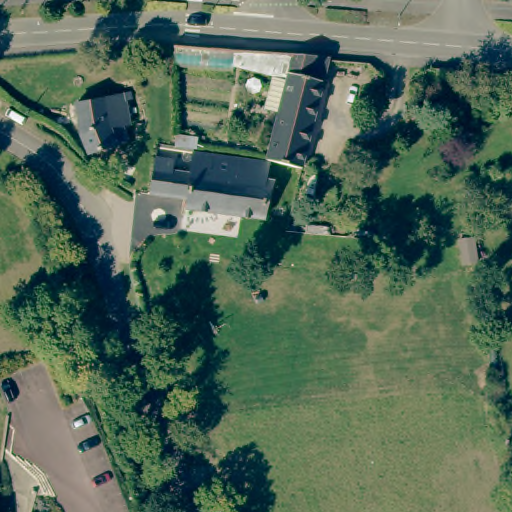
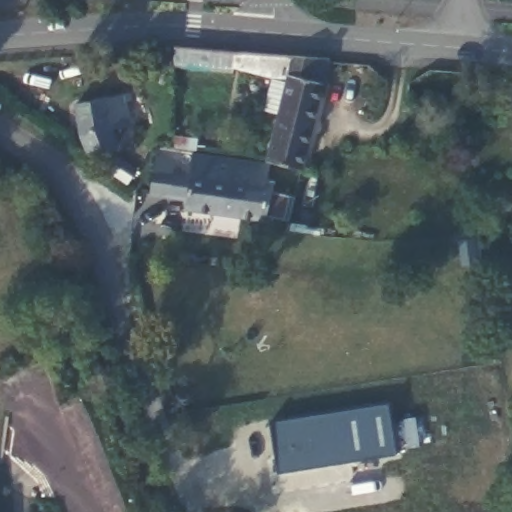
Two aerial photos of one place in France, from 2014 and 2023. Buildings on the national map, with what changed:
unchanged [(295,55),(290,81),(271,77),(241,73),(244,52),(295,55)]
unchanged [(271,163),(284,115),(267,112),(271,77),(290,81),(295,55),(329,60),(305,170),(271,163)]
unchanged [(131,88),(132,97),(125,99),(128,121),(121,124),(123,139),(110,141),(83,144),(75,101),(131,88)]
unchanged [(195,149),(194,159),(178,157),(177,147),(195,149)]
unchanged [(177,206),(170,207),(174,180),(177,180),(192,181),(194,159),(271,163),(267,180),(265,186),(275,187),(269,223),(190,217),(190,212),(190,207),(177,206)]
new [(270,422),(388,403),(396,453),(278,472),(270,422)]

